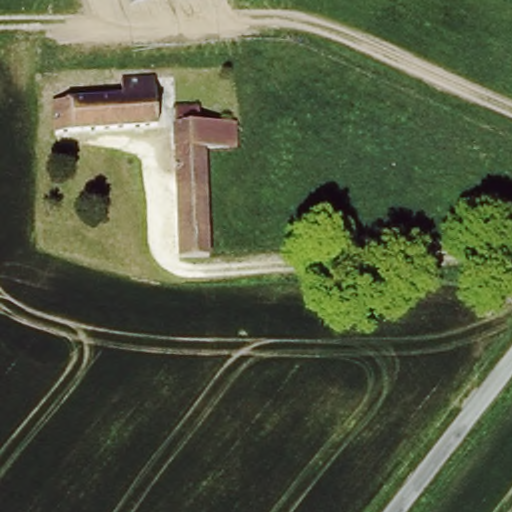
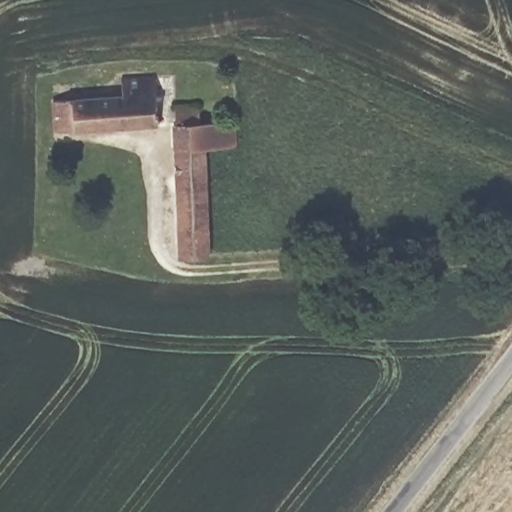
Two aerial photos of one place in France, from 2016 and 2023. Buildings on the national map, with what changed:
unchanged [(52,103),(120,100),(122,78),(152,78),(153,107),(160,106),(160,120),(152,120),(153,128),(53,132),(52,103)]
unchanged [(175,259),(175,107),(203,107),(203,117),(235,117),(240,154),(208,157),(208,244),(208,258),(175,259)]

